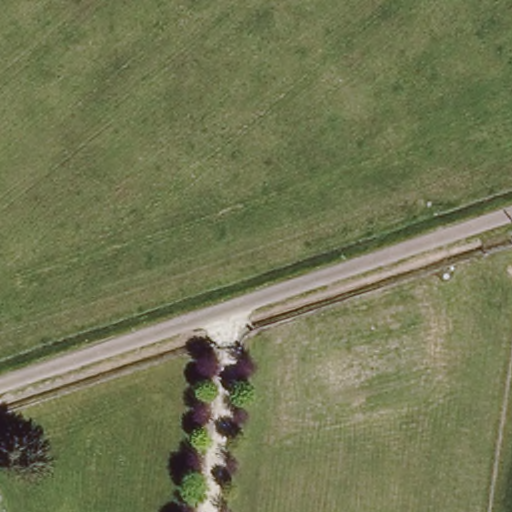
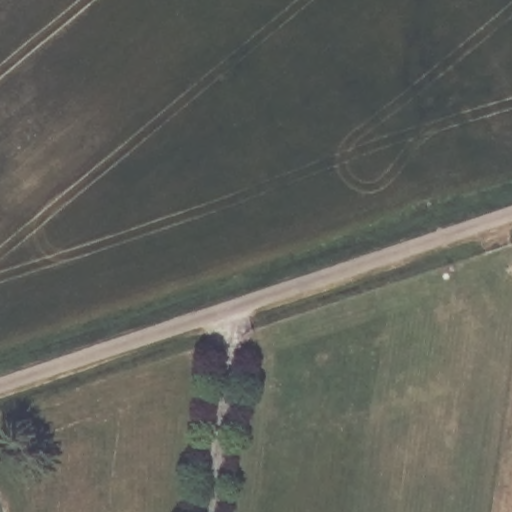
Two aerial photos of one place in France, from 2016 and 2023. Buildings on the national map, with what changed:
[]

